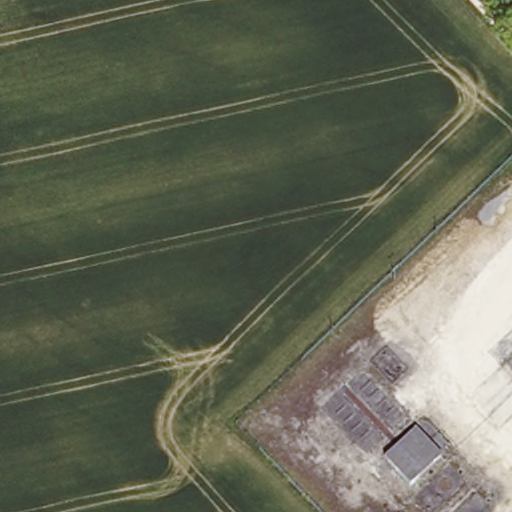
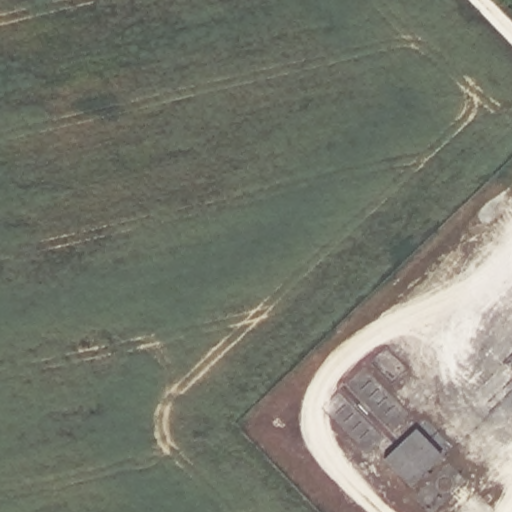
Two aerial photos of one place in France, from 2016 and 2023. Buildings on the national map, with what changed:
unchanged [(442,452),(409,483),(385,458),(415,428),(442,452)]

